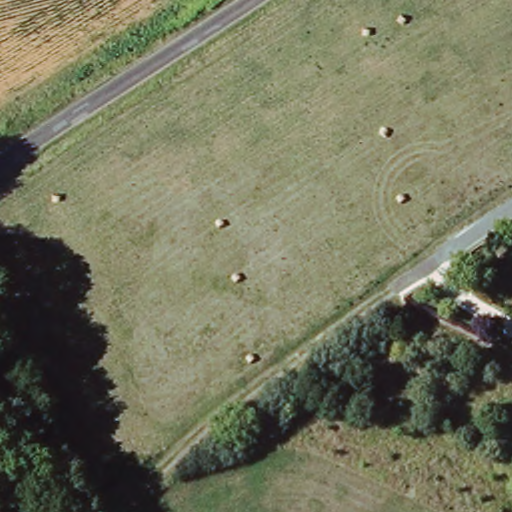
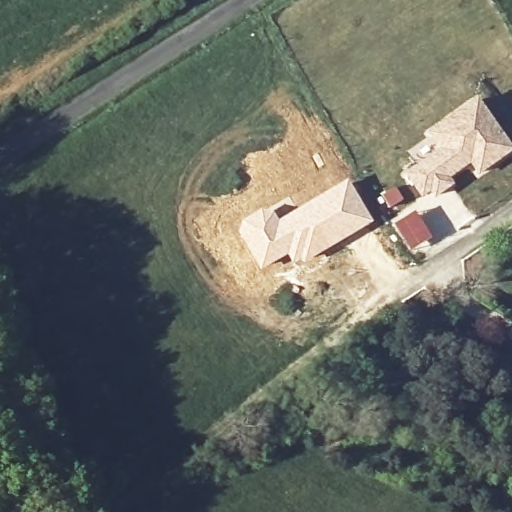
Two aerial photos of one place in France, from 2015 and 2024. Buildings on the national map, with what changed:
new [(474,102),(509,149),(478,173),(470,161),(420,194),(406,174),(437,150),(429,134),(474,102)]
new [(241,221),(254,213),(271,209),(278,219),(346,179),(373,222),(295,268),(286,255),(261,270),(239,236),(239,226),(241,221)]
new [(418,209),(435,236),(409,251),(393,224),(418,209)]

